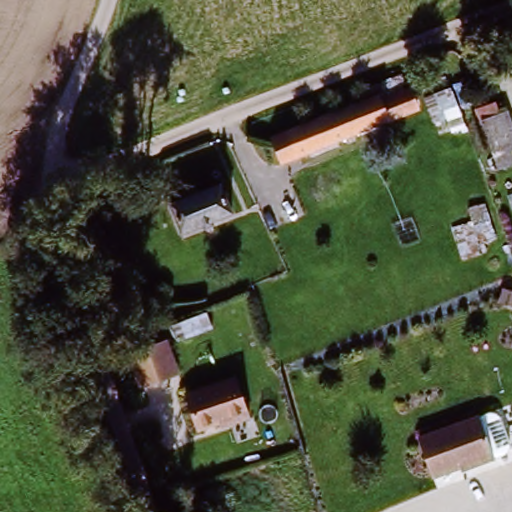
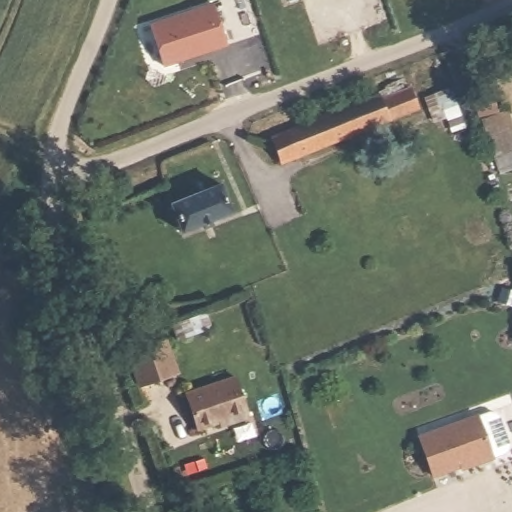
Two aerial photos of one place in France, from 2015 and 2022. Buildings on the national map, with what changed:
new [(215,4),(228,45),(164,65),(151,25),(215,4)]
unchanged [(284,164),(274,138),(414,85),(426,110),(284,164)]
unchanged [(508,110),(512,121),(512,151),(496,157),(482,120),(508,110)]
unchanged [(173,207),(221,190),(230,216),(183,234),(173,207)]
demolished [(477,248),(462,209),(482,200),(497,239),(477,248)]
unchanged [(157,346),(168,380),(149,386),(138,353),(157,346)]
unchanged [(183,390),(232,375),(246,417),(198,433),(183,390)]
unchanged [(431,473),(422,445),(479,425),(489,454),(431,473)]

